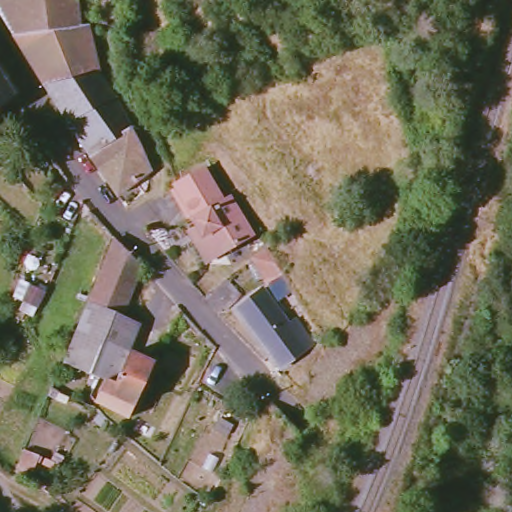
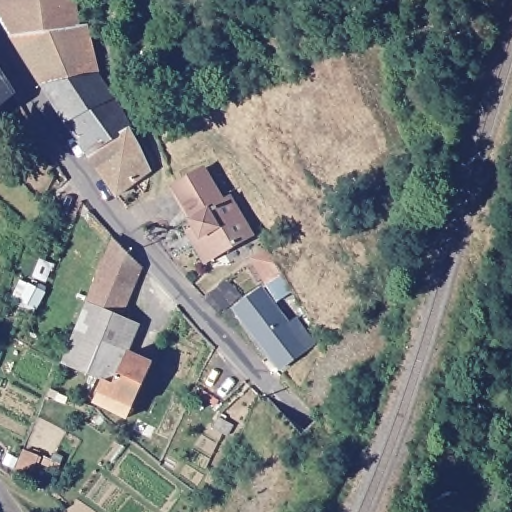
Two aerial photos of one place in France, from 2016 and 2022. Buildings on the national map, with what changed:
unchanged [(12,25),(0,5),(0,0),(84,0),(87,11),(12,25)]
unchanged [(96,9),(100,58),(100,59),(45,76),(12,25),(87,11),(96,9)]
unchanged [(100,59),(116,88),(69,111),(45,76),(100,59)]
unchanged [(0,99),(0,64),(15,89),(0,99)]
unchanged [(116,88),(130,117),(90,140),(69,111),(116,88)]
unchanged [(130,117),(142,140),(152,156),(120,183),(90,140),(130,117)]
unchanged [(194,231),(202,227),(195,216),(198,214),(180,182),(208,165),(229,196),(235,193),(237,197),(257,230),(220,252),(210,258),(194,231)]
unchanged [(124,315),(94,300),(120,236),(145,264),(124,315)]
unchanged [(270,247),(274,253),(287,273),(270,283),(269,281),(254,257),(270,247)]
unchanged [(230,278),(245,294),(241,298),(222,315),(206,297),(230,278)]
unchanged [(245,302),(264,288),(268,293),(289,322),(297,316),(316,343),(284,367),(240,310),(238,307),(245,302)]
unchanged [(132,347),(129,352),(120,375),(107,378),(104,379),(68,363),(94,300),(124,315),(142,325),(132,347)]
unchanged [(157,367),(134,416),(97,401),(107,378),(120,375),(129,352),(157,367)]

